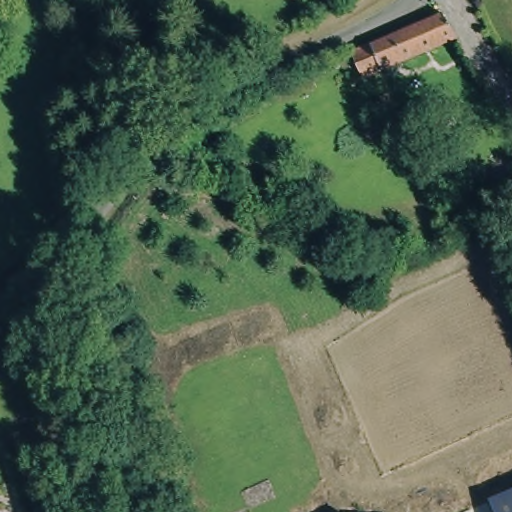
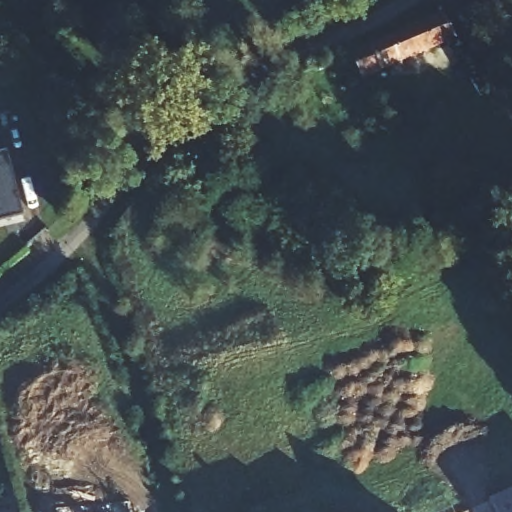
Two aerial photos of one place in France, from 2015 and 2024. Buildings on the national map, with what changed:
unchanged [(455,37),(363,79),(352,53),(442,13),(455,37)]
unchanged [(403,122),(392,128),(378,102),(388,97),(403,122)]
new [(0,152),(6,151),(21,214),(0,219),(0,152)]
unchanged [(494,512),(488,498),(512,488),(512,512),(494,512)]
unchanged [(348,512),(335,512),(345,507),(348,512)]

